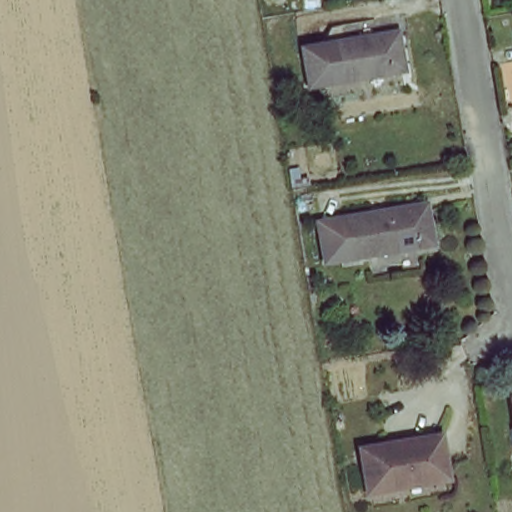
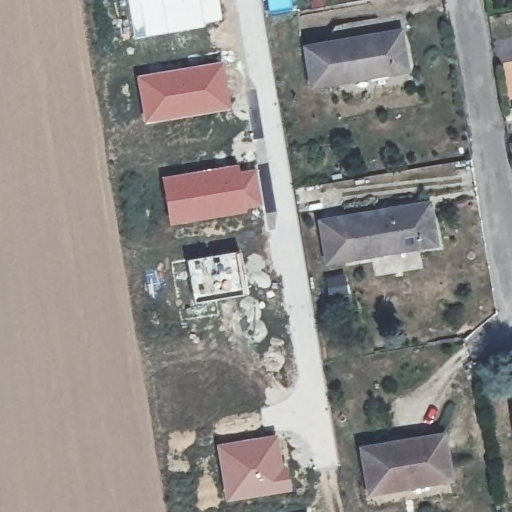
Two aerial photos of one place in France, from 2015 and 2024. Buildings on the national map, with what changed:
new [(205,26),(134,39),(128,0),(220,0),(223,21),(205,26)]
unchanged [(332,85),(323,41),(404,25),(413,72),(332,85)]
unchanged [(308,89),(299,45),(323,41),(332,85),(308,89)]
new [(224,60),(231,110),(142,125),(135,75),(224,60)]
new [(239,164),(240,170),(257,166),(264,207),(245,212),(168,225),(160,176),(239,164)]
unchanged [(352,263),(343,211),(435,200),(442,248),(352,263)]
unchanged [(352,263),(321,266),(316,217),(343,211),(352,263)]
new [(235,250),(242,290),(221,293),(220,285),(197,286),(198,291),(192,295),(186,260),(235,250)]
new [(345,272),(350,300),(330,303),(324,276),(345,272)]
new [(280,433),(292,492),(224,502),(215,443),(280,433)]
unchanged [(443,437),(452,477),(374,495),(367,455),(443,437)]

